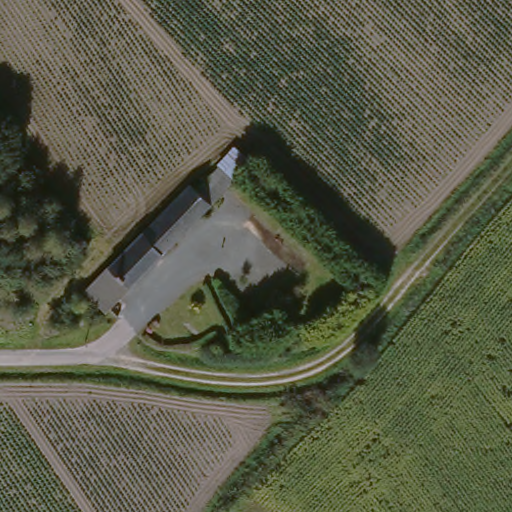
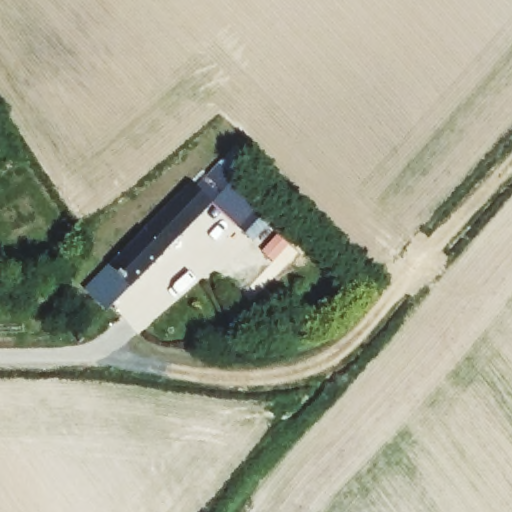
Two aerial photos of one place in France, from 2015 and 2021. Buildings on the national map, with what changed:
unchanged [(126,312),(116,322),(108,315),(103,320),(82,297),(151,224),(187,192),(192,196),(214,174),(233,155),(248,170),(229,189),(118,303),(126,312)]

